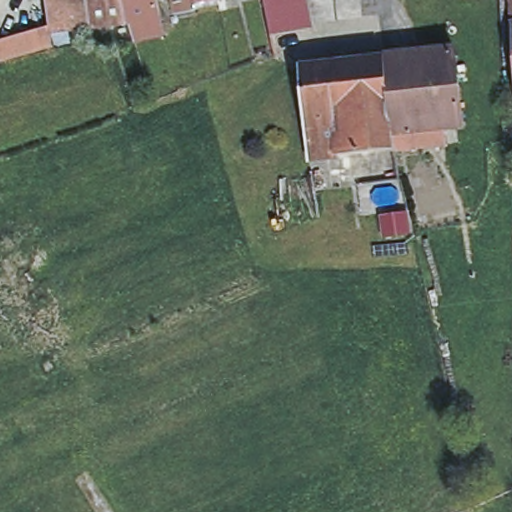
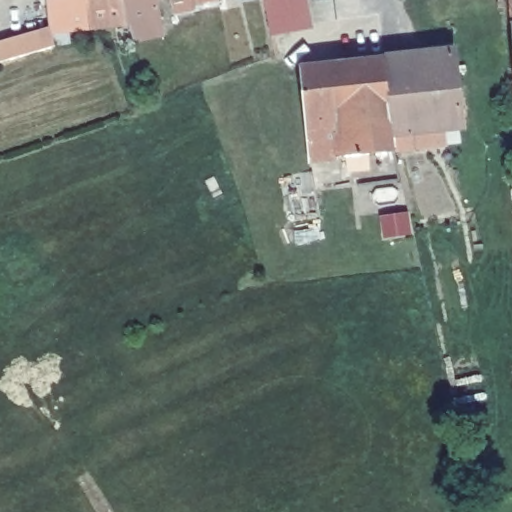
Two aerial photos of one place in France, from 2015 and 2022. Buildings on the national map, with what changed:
unchanged [(128,27),(50,35),(49,27),(47,0),(122,0),(128,27)]
unchanged [(163,38),(133,45),(128,27),(122,0),(157,0),(163,38)]
unchanged [(219,3),(220,8),(195,14),(192,0),(219,0),(219,3)]
unchanged [(225,1),(219,3),(219,0),(225,0),(225,1)]
unchanged [(311,33),(288,37),(271,39),(264,0),(305,0),(311,33)]
unchanged [(49,27),(50,35),(52,48),(0,62),(0,40),(49,27)]
unchanged [(418,52),(456,48),(464,123),(445,126),(446,142),(397,148),(395,149),(384,56),(418,52)]
unchanged [(299,65),(384,56),(395,149),(309,159),(299,65)]

